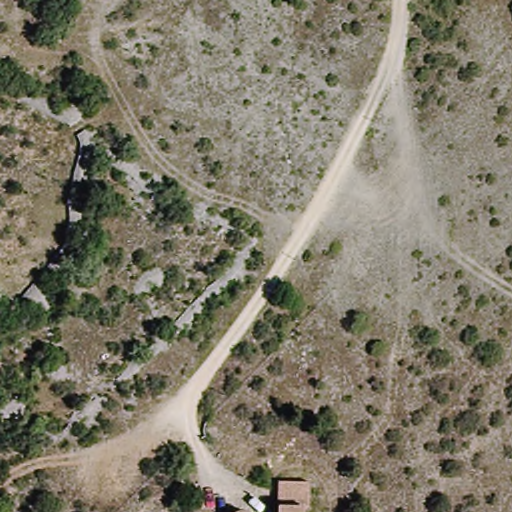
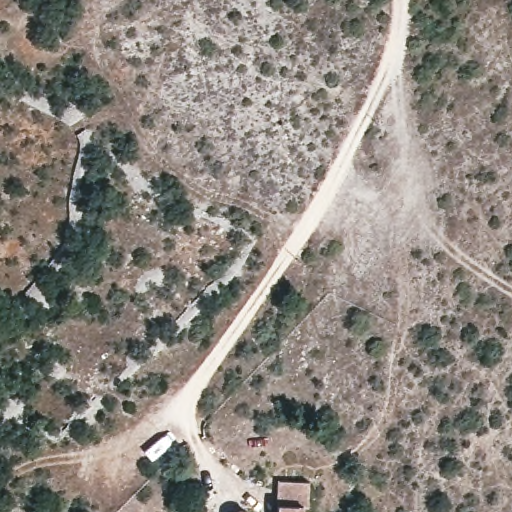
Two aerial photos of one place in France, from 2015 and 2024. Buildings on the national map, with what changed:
unchanged [(307,480),(308,503),(301,506),(301,512),(272,512),(273,480),(307,480)]
unchanged [(247,512),(240,512),(246,511),(247,512)]

